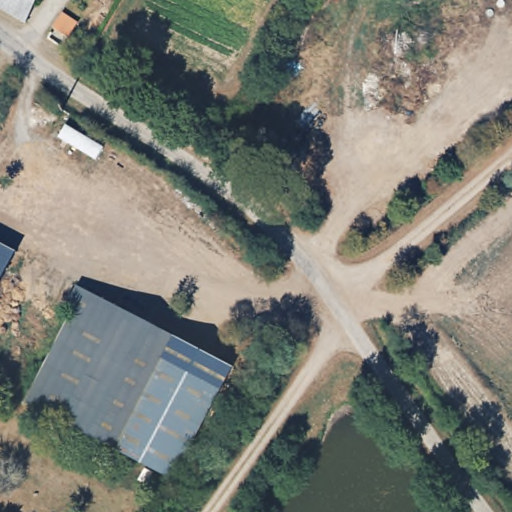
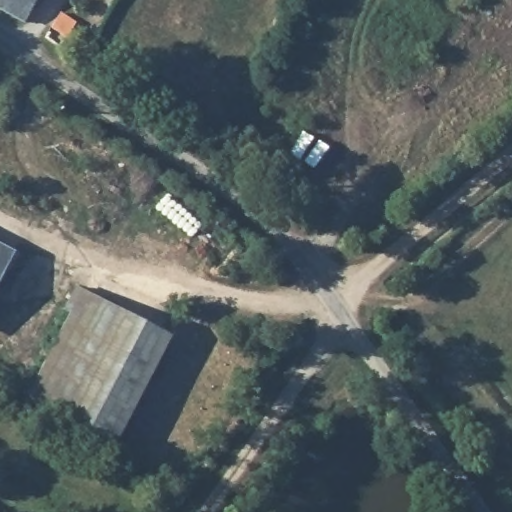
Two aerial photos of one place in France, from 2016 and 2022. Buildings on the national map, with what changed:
unchanged [(0,2),(0,0),(34,0),(26,15),(0,2)]
unchanged [(54,12),(66,21),(58,35),(45,27),(54,12)]
unchanged [(14,255),(0,281),(0,247),(14,255)]
unchanged [(114,447),(22,399),(65,318),(80,291),(168,337),(157,361),(114,447)]
demolished [(122,430),(157,361),(217,391),(174,480),(114,447),(122,430)]

